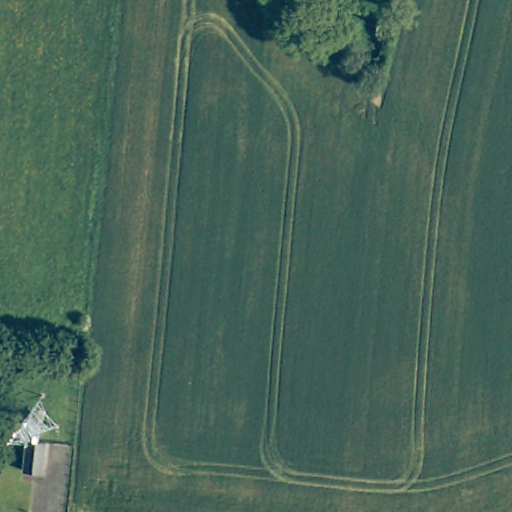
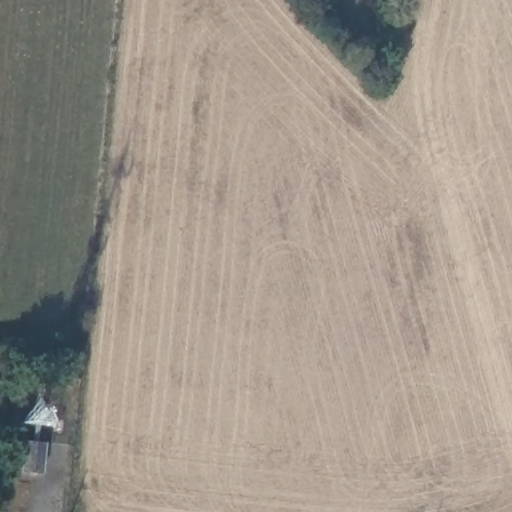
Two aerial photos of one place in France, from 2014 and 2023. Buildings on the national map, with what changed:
unchanged [(29,438),(47,439),(44,471),(27,469),(29,438)]

